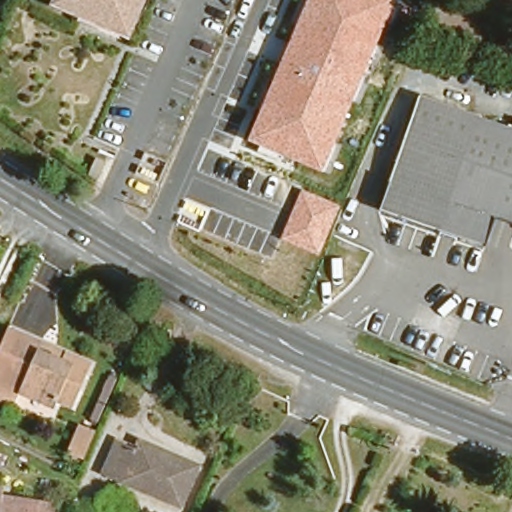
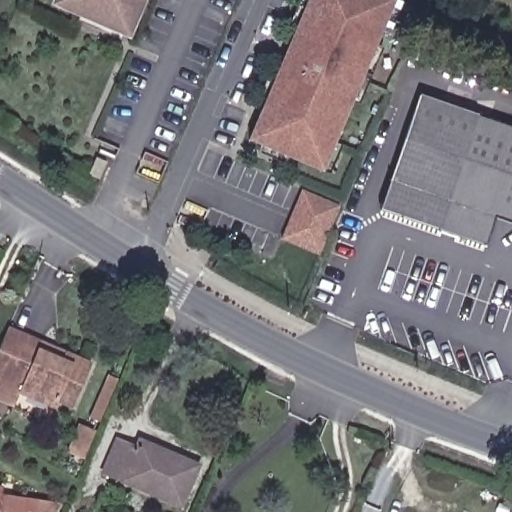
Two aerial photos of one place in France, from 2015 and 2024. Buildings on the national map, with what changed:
unchanged [(127,15),(120,30),(54,0),(132,0),(125,14),(127,15)]
unchanged [(360,105),(352,102),(335,143),(342,145),(330,173),(321,170),(248,140),(308,0),(399,0),(403,2),(360,105)]
unchanged [(480,245),(376,208),(420,96),(512,129),(512,221),(491,213),(480,245)]
unchanged [(341,204),(320,256),(281,240),(302,189),(341,204)]
unchanged [(54,346),(52,351),(69,358),(71,353),(90,361),(71,403),(60,398),(58,405),(0,380),(0,338),(5,325),(54,346)]
unchanged [(176,505),(102,475),(115,442),(134,449),(138,439),(165,450),(194,461),(176,505)]
unchanged [(8,507),(9,498),(32,502),(49,504),(47,512),(0,512),(0,506),(8,507)]

